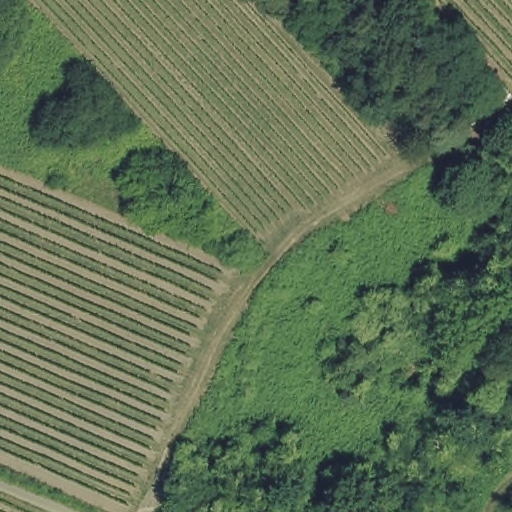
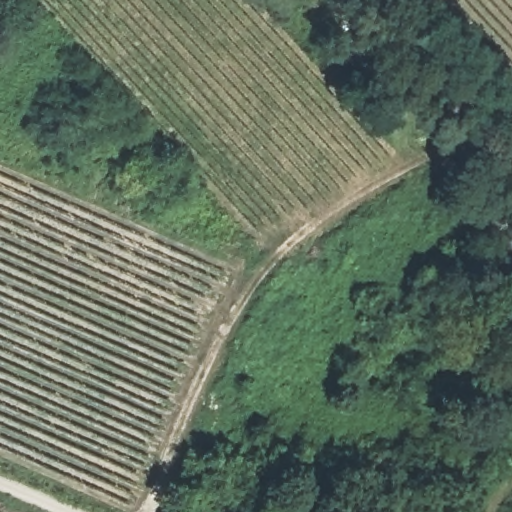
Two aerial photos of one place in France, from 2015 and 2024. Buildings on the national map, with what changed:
unchanged [(463,93),(494,73),(512,91),(512,95),(481,115),(463,93)]

